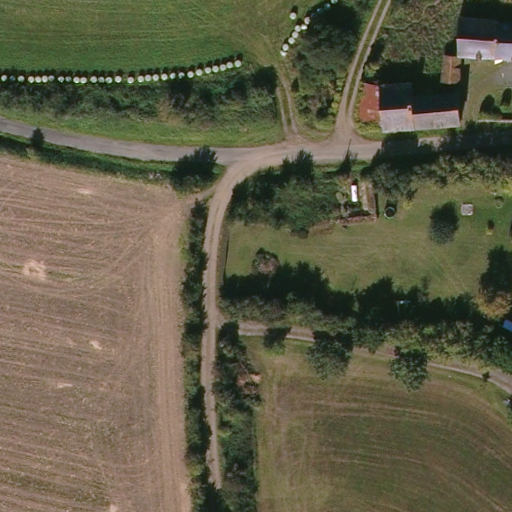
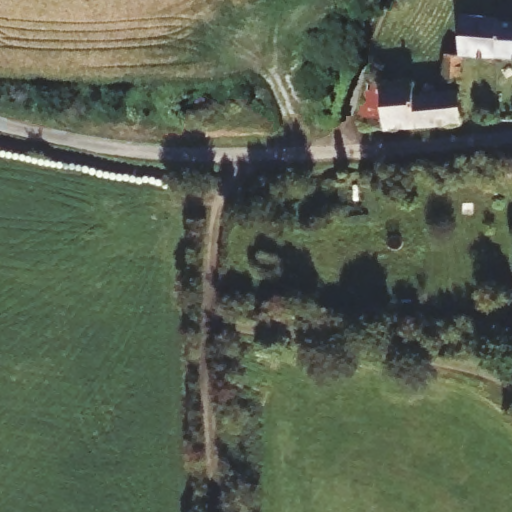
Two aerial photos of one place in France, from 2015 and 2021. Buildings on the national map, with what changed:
unchanged [(481,58),(460,57),(460,14),(462,14),(506,17),(506,22),(512,22),(512,59),(497,59),(481,58)]
unchanged [(459,57),(460,57),(461,81),(448,80),(448,57),(459,57)]
unchanged [(404,107),(422,107),(446,109),(446,136),(371,134),(371,132),(355,130),(360,82),(377,84),(407,88),(404,107)]

